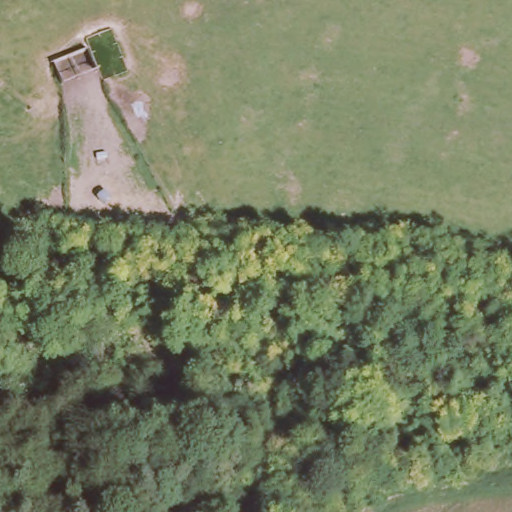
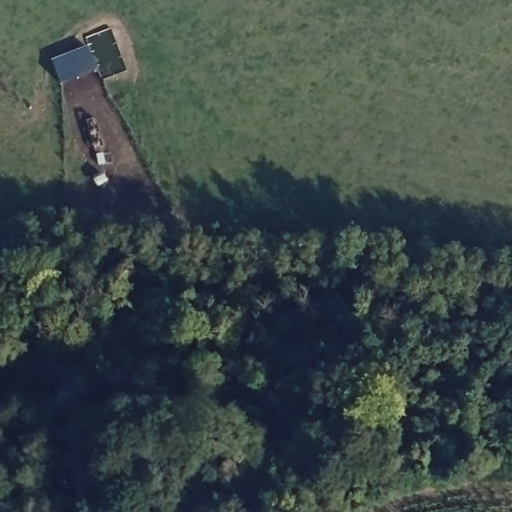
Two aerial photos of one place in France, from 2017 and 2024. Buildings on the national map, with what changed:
unchanged [(100,70),(65,85),(54,63),(91,46),(100,70)]

